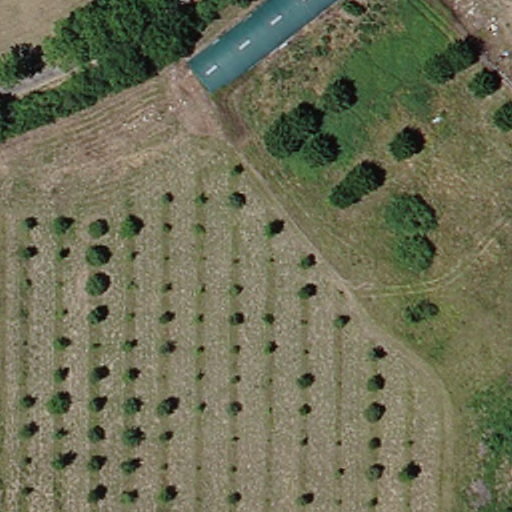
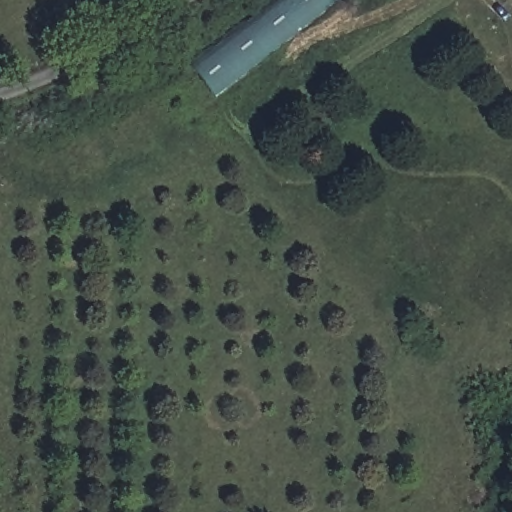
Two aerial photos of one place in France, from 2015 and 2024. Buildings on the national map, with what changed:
unchanged [(266,0),(351,0),(222,99),(189,61),(266,0)]

